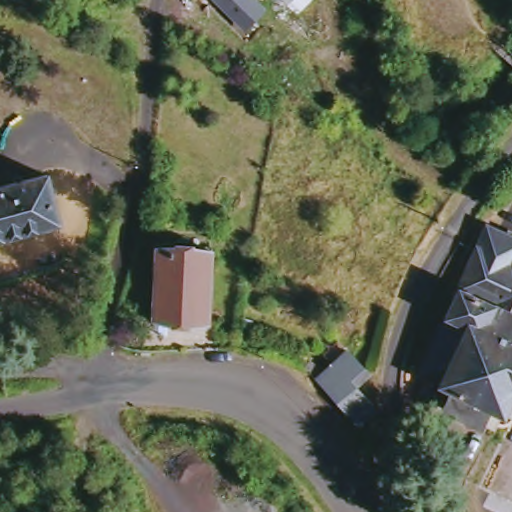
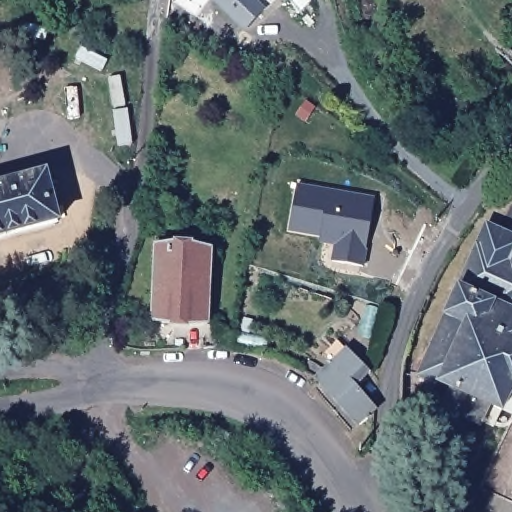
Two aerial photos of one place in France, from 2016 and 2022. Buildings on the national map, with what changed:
unchanged [(266,9),(242,32),(209,1),(200,10),(190,0),(257,0),(266,9)]
unchanged [(298,14),(279,0),(312,0),(298,14)]
unchanged [(62,228),(0,241),(0,192),(53,181),(62,228)]
new [(374,200),(363,267),(333,262),(338,239),(289,230),(296,187),(374,200)]
unchanged [(511,411),(506,410),(503,408),(500,413),(487,408),(485,412),(448,395),(449,390),(439,385),(446,368),(427,360),(484,234),(512,246),(512,410),(511,411)]
unchanged [(218,254),(213,328),(159,326),(161,252),(218,254)]
unchanged [(335,362),(350,350),(379,383),(364,397),(381,418),(365,432),(329,388),(318,381),(326,374),(336,382),(344,375),(335,362)]

